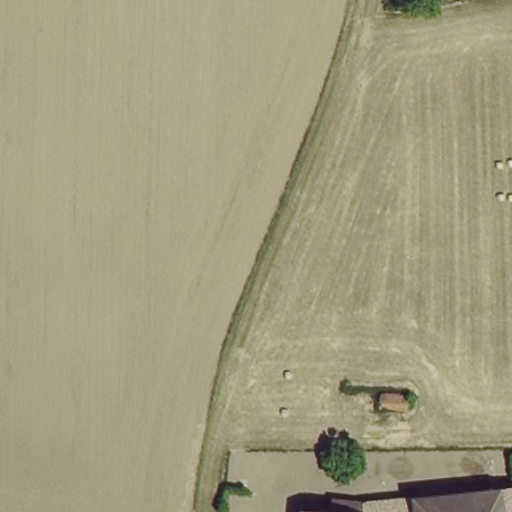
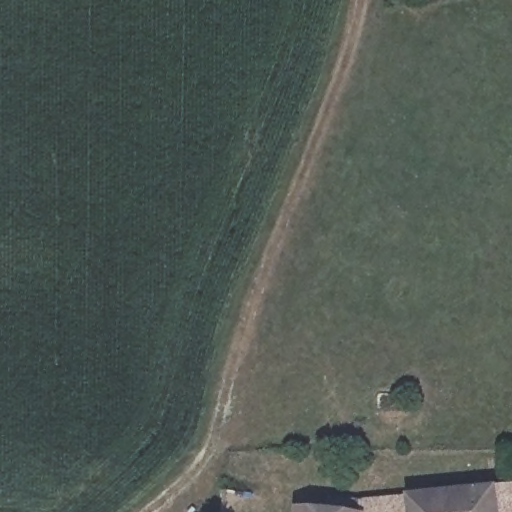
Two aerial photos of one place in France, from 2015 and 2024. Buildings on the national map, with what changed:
unchanged [(378,396),(410,396),(412,416),(378,416),(378,396)]
unchanged [(512,491),(512,512),(431,512),(430,496),(445,495),(512,491)]
unchanged [(430,496),(431,512),(390,512),(389,496),(430,496)]

